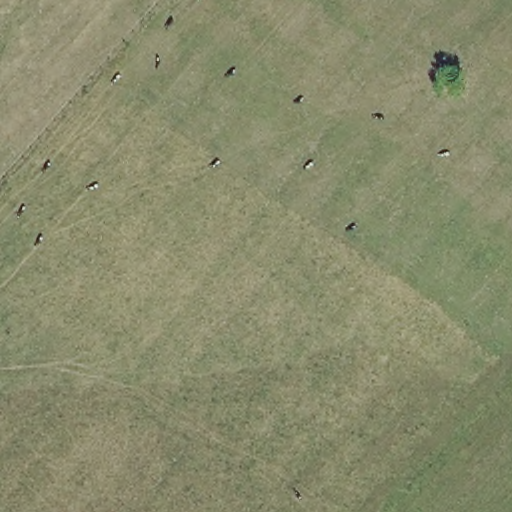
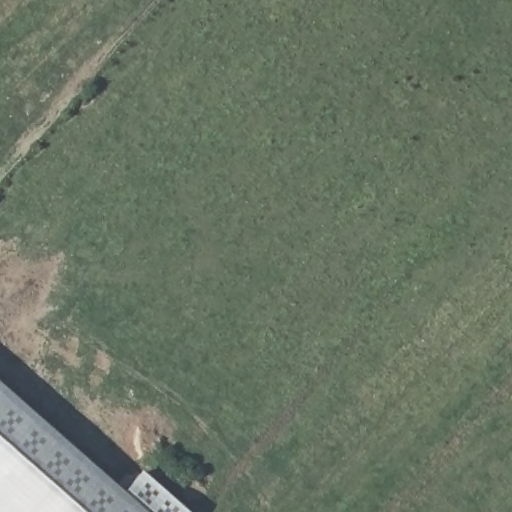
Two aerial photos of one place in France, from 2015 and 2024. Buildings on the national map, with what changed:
new [(149,512),(0,512),(0,379),(149,512)]

